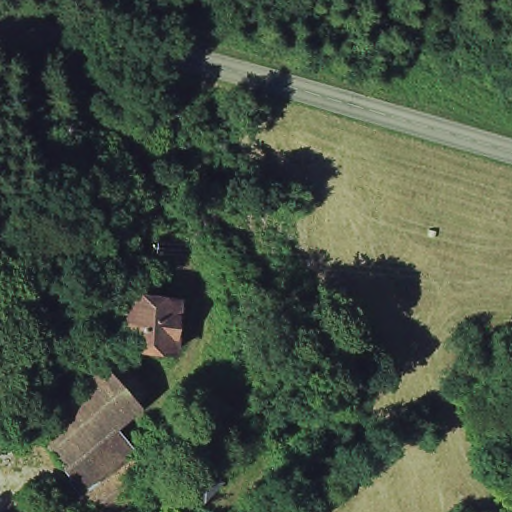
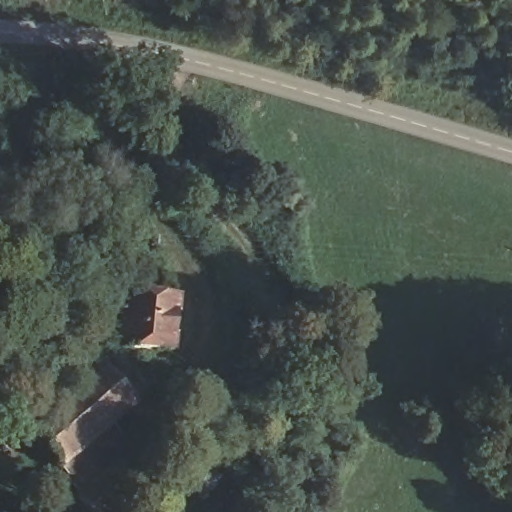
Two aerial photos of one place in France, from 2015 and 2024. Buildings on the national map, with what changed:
unchanged [(122,293),(180,298),(172,354),(120,350),(122,293)]
unchanged [(58,369),(100,332),(150,389),(136,407),(118,426),(153,474),(107,512),(58,512),(75,495),(61,471),(32,428),(72,389),(58,369)]

